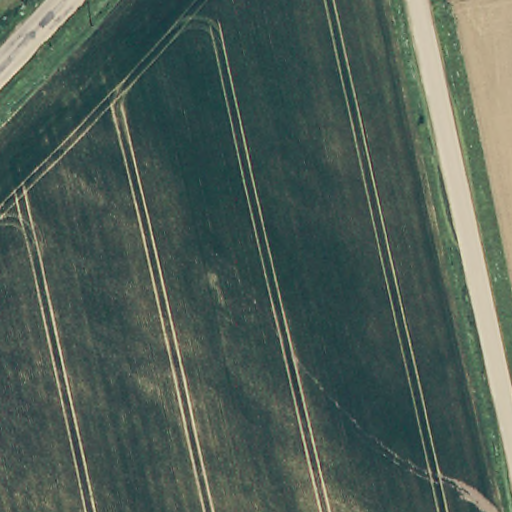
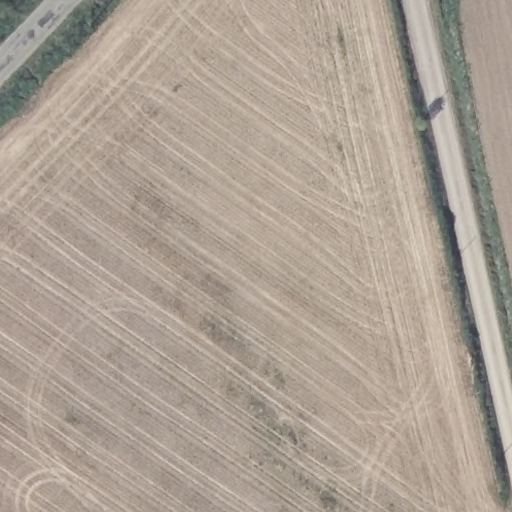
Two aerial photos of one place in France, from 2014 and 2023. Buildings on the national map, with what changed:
[]

